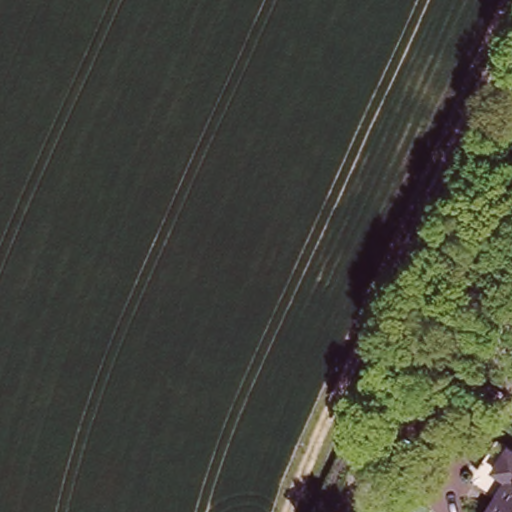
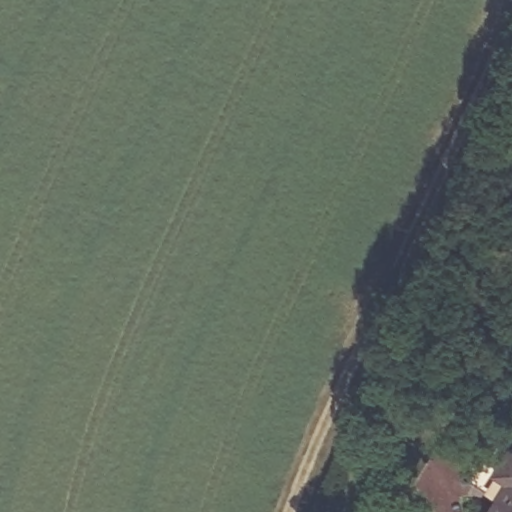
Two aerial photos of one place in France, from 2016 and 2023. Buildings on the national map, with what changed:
unchanged [(505,469),(512,457),(512,474),(505,469)]
unchanged [(512,478),(512,512),(493,512),(512,478)]

